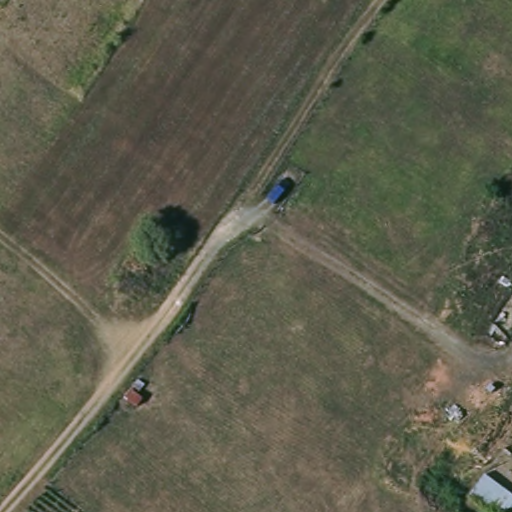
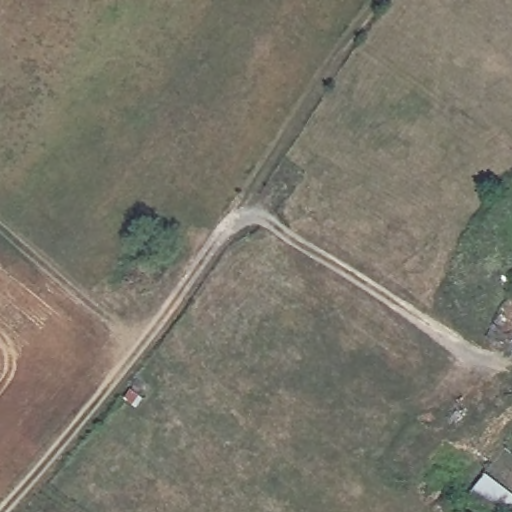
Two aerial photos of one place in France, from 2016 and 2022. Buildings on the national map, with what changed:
unchanged [(512,512),(491,512),(470,496),(487,471),(512,490),(512,512)]

